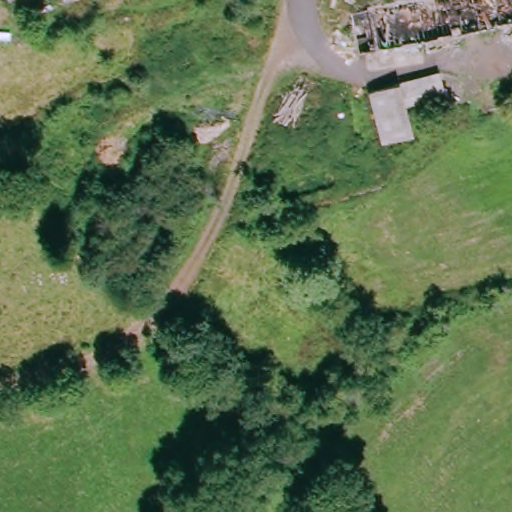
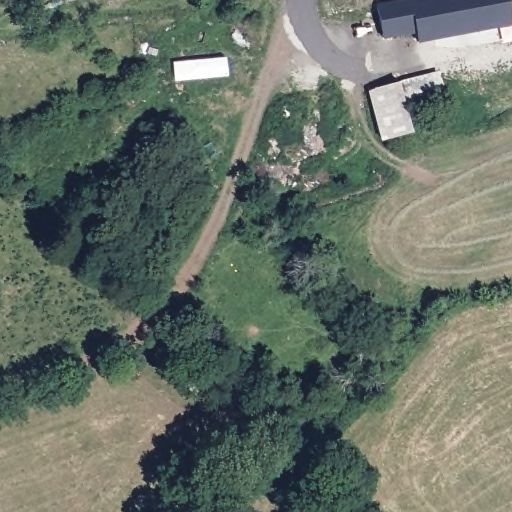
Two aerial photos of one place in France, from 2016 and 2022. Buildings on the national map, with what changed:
demolished [(441,42),(439,32),(367,46),(361,10),(416,0),(512,0),(512,21),(458,31),(460,39),(441,42)]
new [(401,0),(509,0),(512,12),(512,22),(419,41),(416,32),(385,39),(377,5),(401,0)]
unchanged [(390,147),(377,122),(369,99),(438,76),(448,105),(410,117),(417,137),(398,144),(390,147)]

